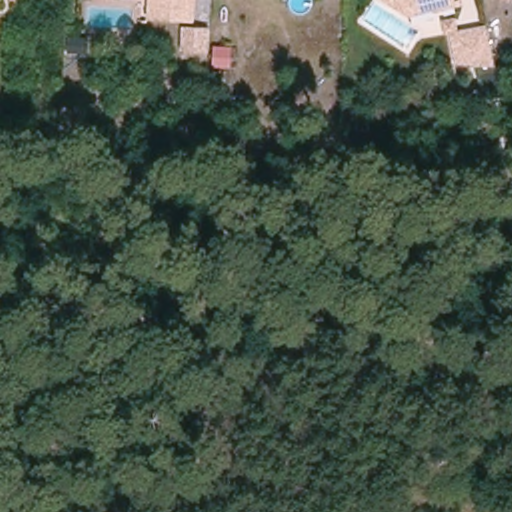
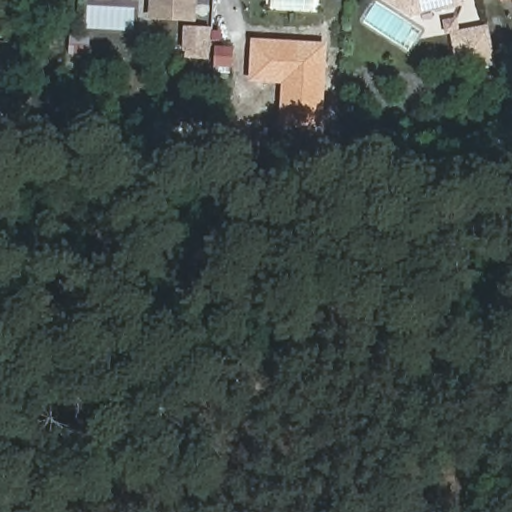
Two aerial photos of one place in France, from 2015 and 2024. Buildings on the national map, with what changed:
unchanged [(150,16),(151,0),(193,0),(192,18),(150,16)]
unchanged [(436,9),(435,7),(410,14),(389,0),(459,0),(460,3),(436,9)]
unchanged [(495,64),(457,62),(452,34),(487,27),(495,64)]
unchanged [(207,51),(184,49),(185,28),(208,30),(207,51)]
new [(248,82),(250,38),(327,43),(322,126),(277,123),(281,84),(248,82)]
unchanged [(86,53),(70,52),(70,39),(87,39),(86,53)]

